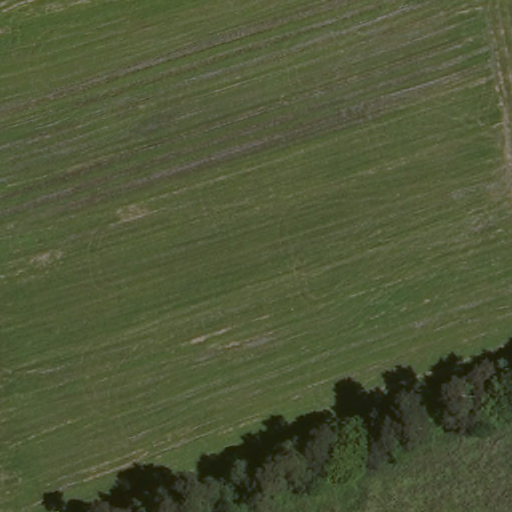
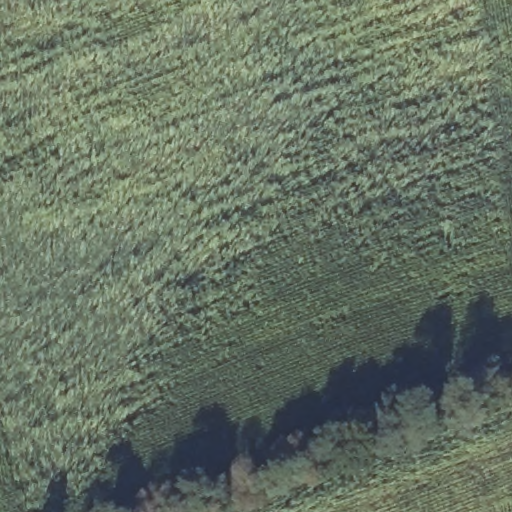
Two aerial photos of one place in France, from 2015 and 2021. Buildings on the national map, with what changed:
[]

